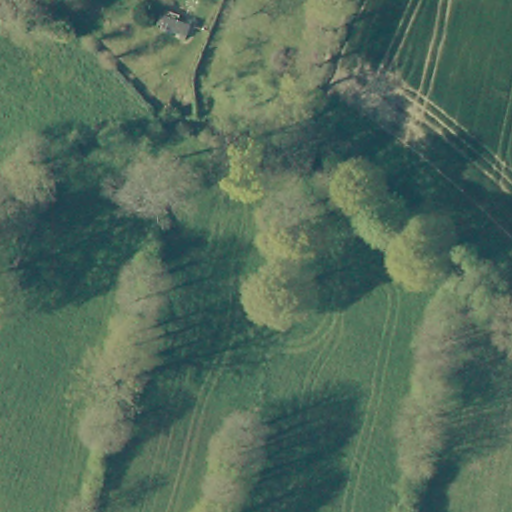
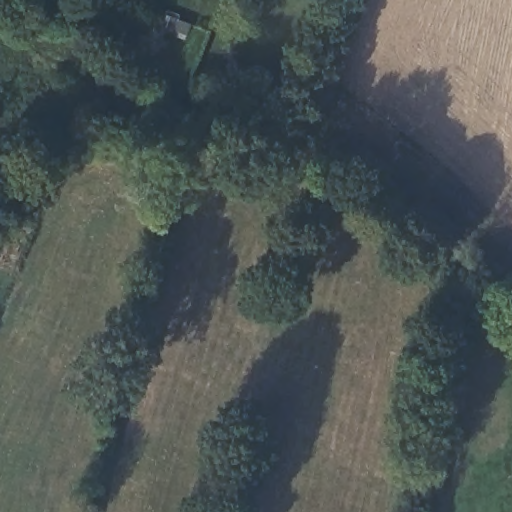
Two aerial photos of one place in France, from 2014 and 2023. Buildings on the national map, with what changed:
[]

